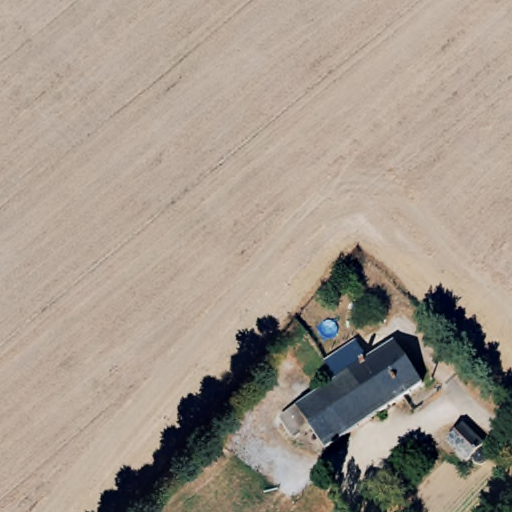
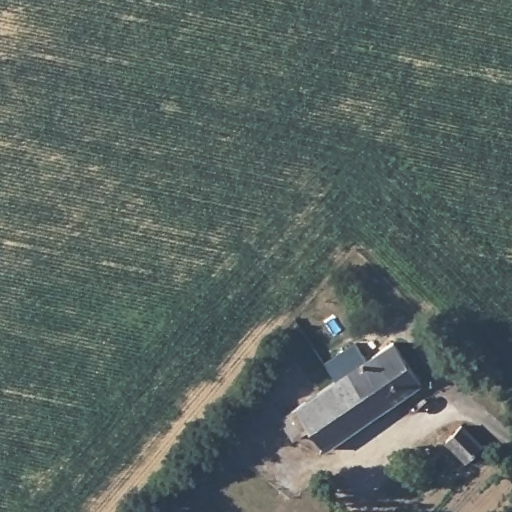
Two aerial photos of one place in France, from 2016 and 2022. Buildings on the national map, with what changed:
unchanged [(342,353),(354,368),(383,346),(387,349),(417,383),(322,455),(305,434),(287,447),(272,428),(323,390),(312,376),(342,353)]

